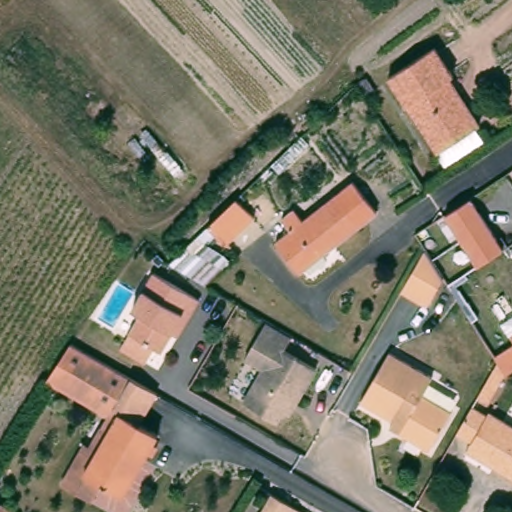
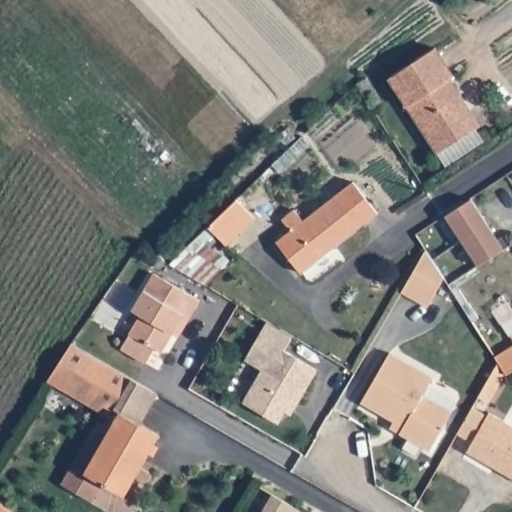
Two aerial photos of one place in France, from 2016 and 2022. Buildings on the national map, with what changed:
unchanged [(429,52),(448,81),(443,84),(474,131),(434,156),(384,82),(429,52)]
unchanged [(290,230),(282,218),(294,209),(304,220),(353,182),(377,212),(300,272),(277,241),(290,230)]
unchanged [(256,216),(227,244),(209,225),(233,201),(238,197),(256,216)]
unchanged [(476,265),(444,215),(471,197),(504,247),(476,265)]
unchanged [(426,249),(444,277),(427,306),(402,291),(426,249)]
unchanged [(173,331),(162,350),(155,347),(147,361),(122,347),(141,313),(133,308),(154,272),(200,298),(190,316),(179,335),(173,331)]
unchanged [(457,285),(469,303),(463,307),(451,288),(457,285)]
unchanged [(285,411),(278,422),(245,402),(265,367),(247,357),(268,320),(293,335),(285,350),(316,368),(297,402),(290,414),(285,411)]
unchanged [(494,357),(491,352),(511,339),(506,331),(512,327),(512,362),(502,369),(485,397),(475,391),(494,357)]
unchanged [(141,423),(159,433),(124,493),(103,481),(87,472),(98,452),(90,448),(109,416),(48,380),(72,343),(110,366),(158,393),(141,423)]
unchanged [(390,426),(357,407),(386,357),(429,382),(419,398),(448,416),(426,455),(396,437),(386,432),(390,426)]
unchanged [(469,446),(454,437),(459,427),(469,412),(484,420),(486,417),(512,432),(512,484),(490,472),(463,456),(467,450),(469,446)]
unchanged [(103,481),(93,500),(62,482),(84,445),(90,448),(98,452),(87,472),(103,481)]
unchanged [(15,505),(10,512),(0,512),(0,494),(15,505)]
unchanged [(288,512),(259,512),(267,500),(288,512)]

